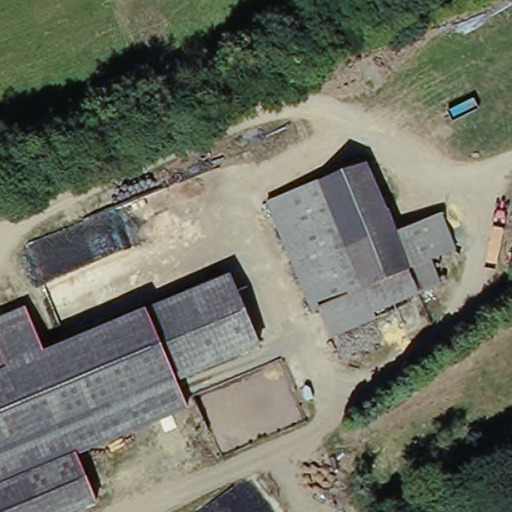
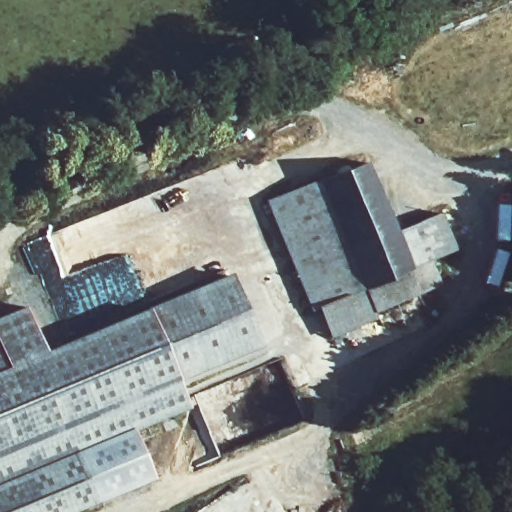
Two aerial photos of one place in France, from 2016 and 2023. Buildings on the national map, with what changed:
unchanged [(333,180),(376,163),(407,230),(450,212),(465,249),(440,260),(451,283),(429,292),(419,269),(418,269),(330,309),(325,312),(276,204),(333,180)]
unchanged [(387,310),(388,315),(342,335),(330,309),(418,269),(419,269),(429,292),(387,310)]
unchanged [(225,284),(257,352),(174,386),(142,319),(225,284)]
unchanged [(40,361),(142,319),(174,386),(187,414),(76,461),(98,507),(85,512),(0,512),(0,324),(19,315),(40,361)]
new [(76,461),(135,436),(154,479),(97,504),(76,461)]

